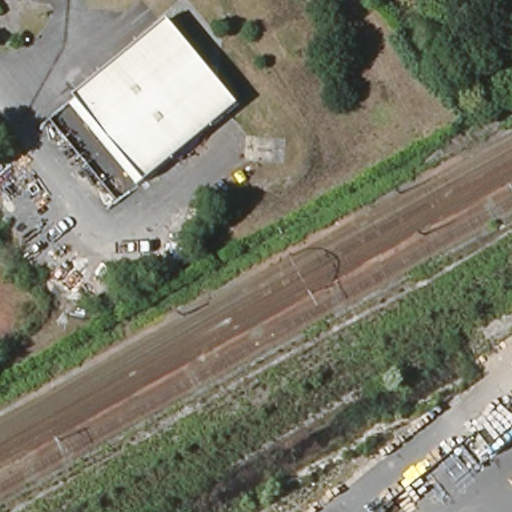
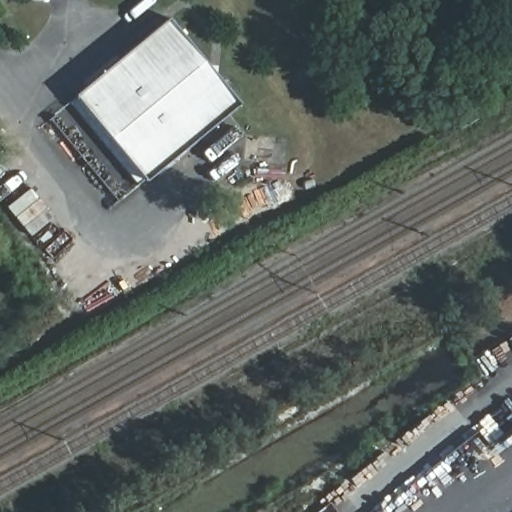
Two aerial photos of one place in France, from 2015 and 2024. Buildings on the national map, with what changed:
unchanged [(241,101),(147,179),(77,93),(170,16),(241,101)]
unchanged [(147,179),(140,185),(69,100),(77,93),(147,179)]

